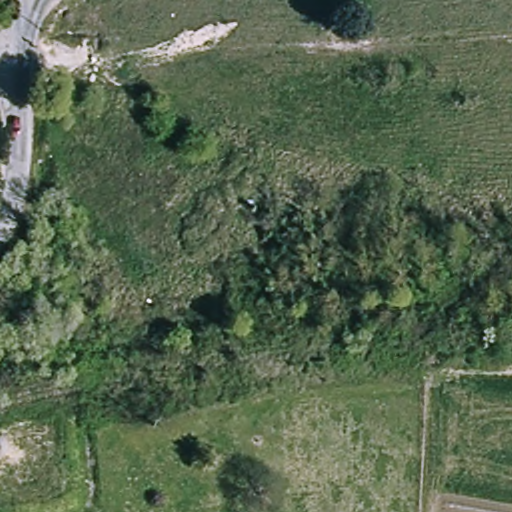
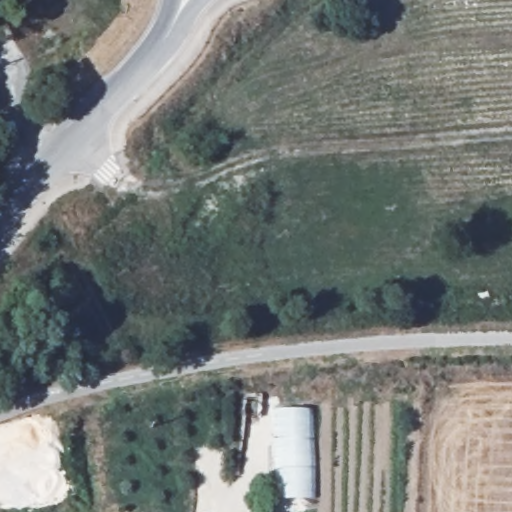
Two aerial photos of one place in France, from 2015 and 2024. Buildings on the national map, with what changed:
new [(279,499),(278,410),(314,408),(315,497),(279,499)]

